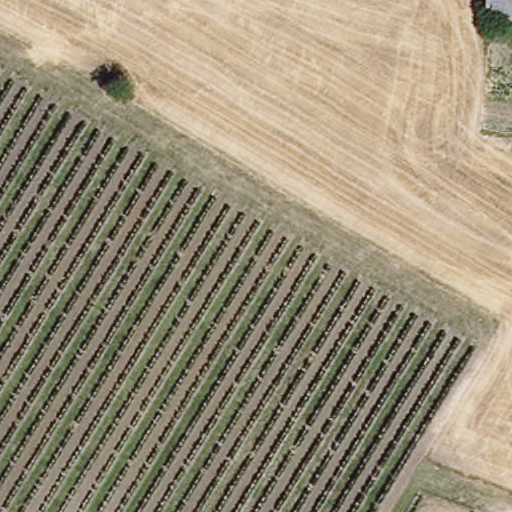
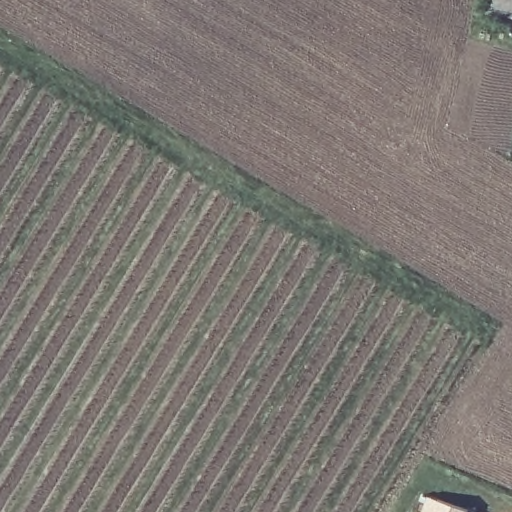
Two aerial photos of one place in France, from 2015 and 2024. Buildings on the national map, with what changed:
unchanged [(512,19),(482,14),(484,0),(512,0),(512,19)]
new [(470,512),(423,512),(429,497),(470,512)]

